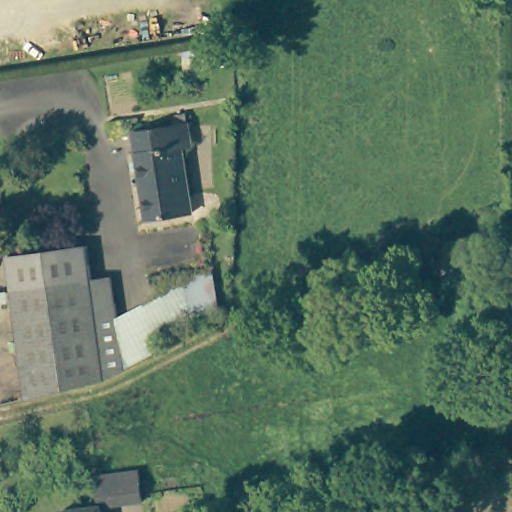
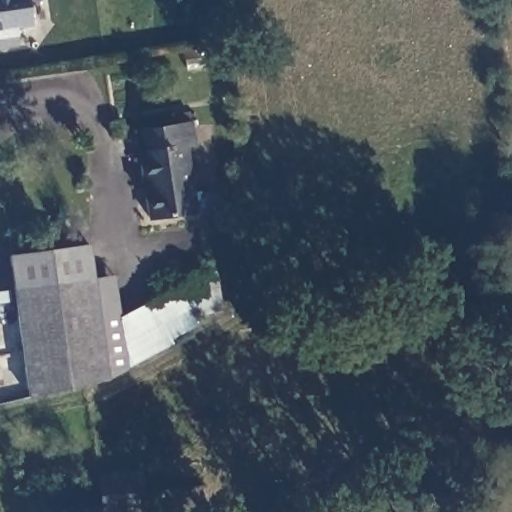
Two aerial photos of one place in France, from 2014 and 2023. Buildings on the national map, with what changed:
new [(25,2),(29,26),(16,27),(18,36),(0,38),(0,0),(39,0),(40,0),(25,2)]
unchanged [(194,146),(184,148),(194,212),(145,220),(131,133),(190,124),(194,146)]
unchanged [(92,277),(113,274),(117,298),(120,315),(128,362),(128,365),(126,368),(125,369),(112,384),(32,398),(8,256),(86,243),(92,277)]
unchanged [(189,284),(222,274),(228,314),(198,332),(128,365),(128,362),(120,315),(189,284)]
unchanged [(98,477),(140,473),(141,488),(142,503),(101,506),(99,492),(98,477)]
unchanged [(56,512),(56,510),(101,507),(101,512),(56,512)]

